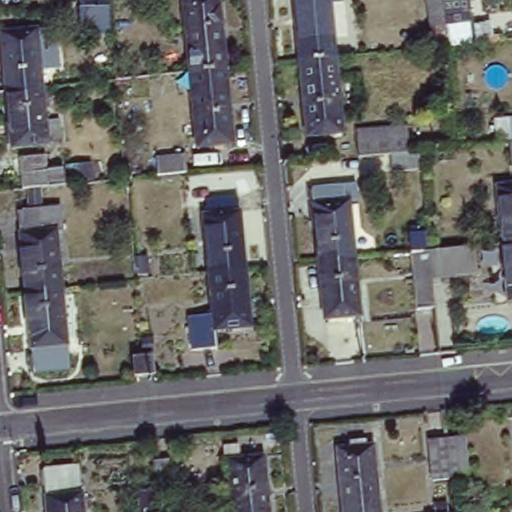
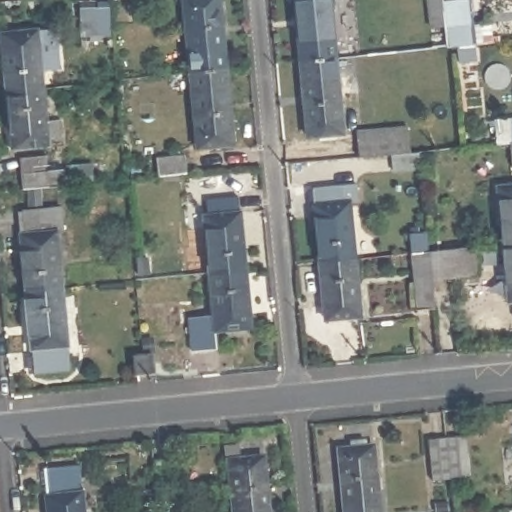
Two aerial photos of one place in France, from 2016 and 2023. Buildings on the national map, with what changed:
unchanged [(183,0),(219,0),(225,69),(190,71),(183,0)]
unchanged [(294,0),(345,0),(348,36),(333,37),(335,57),(300,60),(294,0)]
unchanged [(426,27),(423,0),(467,0),(468,6),(460,7),(465,45),(441,47),(427,48),(426,27)]
unchanged [(78,8),(109,6),(110,34),(80,35),(78,8)]
unchanged [(41,25),(47,85),(11,89),(6,29),(41,25)]
unchanged [(335,57),(342,133),(307,136),(300,60),(335,57)]
unchanged [(190,73),(190,71),(225,69),(232,143),(197,146),(190,73)]
unchanged [(47,85),(50,116),(64,115),(65,137),(15,142),(11,89),(47,85)]
unchanged [(510,142),(496,144),(495,128),(512,126),(512,167),(510,142)]
unchanged [(356,131),(390,129),(407,127),(409,152),(358,157),(357,140),(356,131)]
unchanged [(155,157),(185,154),(186,174),(157,176),(155,157)]
unchanged [(19,158),(45,155),(47,170),(64,169),(65,185),(22,190),(19,158)]
unchanged [(312,188),(356,183),(358,201),(350,202),(355,260),(319,262),(312,188)]
unchanged [(502,186),(512,185),(512,243),(507,244),(502,186)]
unchanged [(202,204),(207,204),(205,190),(237,186),(245,259),(209,262),(202,204)]
unchanged [(422,193),(424,209),(412,210),(411,195),(422,193)]
unchanged [(20,224),(25,224),(21,200),(61,195),(64,220),(56,220),(60,276),(25,280),(20,224)]
unchanged [(417,308),(412,254),(410,254),(407,234),(426,231),(428,252),(473,247),(476,273),(431,280),(433,306),(417,308)]
unchanged [(512,243),(512,291),(507,244),(512,243)]
unchanged [(245,259),(250,316),(215,320),(215,328),(190,330),(189,310),(214,308),(209,262),(245,259)]
unchanged [(146,260),(149,275),(137,276),(135,260),(146,260)]
unchanged [(355,260),(360,315),(325,318),(319,262),(355,260)]
unchanged [(60,276),(70,360),(34,363),(25,280),(60,276)]
unchanged [(134,376),(132,357),(152,355),(154,375),(134,376)]
unchanged [(465,436),(470,476),(449,479),(432,481),(428,440),(445,437),(465,436)]
unchanged [(350,442),(365,440),(366,447),(373,446),(380,512),(344,512),(338,450),(350,449),(350,442)]
unchanged [(239,464),(263,461),(268,512),(232,512),(227,465),(225,465),(224,452),(237,450),(239,464)]
unchanged [(85,460),(87,475),(80,476),(84,512),(47,512),(42,463),(85,460)]
unchanged [(169,460),(171,487),(155,488),(154,460),(169,460)]

